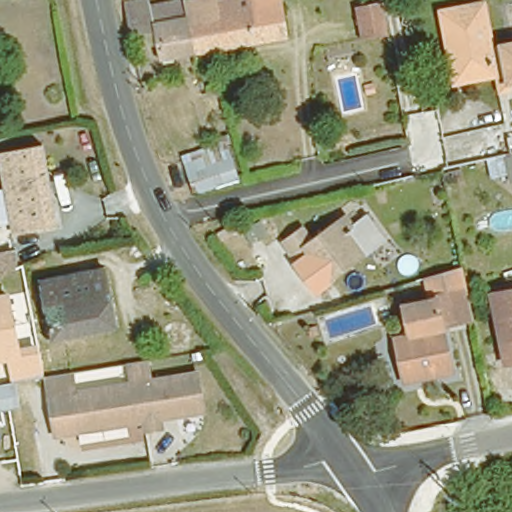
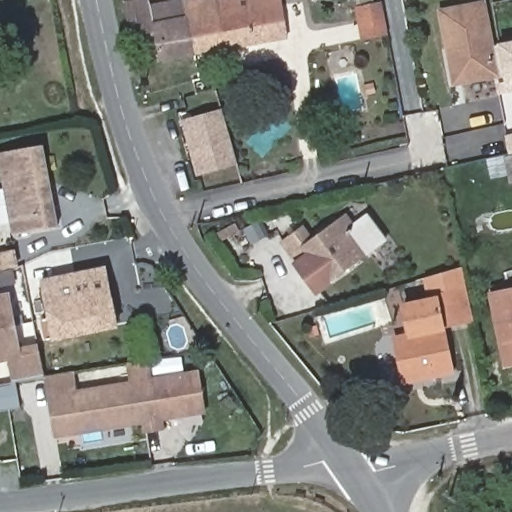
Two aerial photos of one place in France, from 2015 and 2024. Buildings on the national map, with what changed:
unchanged [(182,4),(211,0),(259,0),(260,4),(272,2),(275,15),(280,39),(193,55),(182,4)]
unchanged [(437,7),(466,2),(473,0),(478,0),(487,42),(512,38),(512,82),(504,84),(499,64),(457,75),(450,76),(444,42),(437,7)]
unchanged [(121,38),(115,7),(144,2),(146,11),(182,4),(193,55),(157,62),(151,43),(123,49),(121,38)]
unchanged [(355,35),(352,13),(382,7),(385,27),(355,35)]
new [(179,121),(219,110),(235,164),(195,174),(179,121)]
unchanged [(507,152),(504,134),(512,132),(512,181),(507,182),(504,154),(507,152)]
demolished [(224,137),(237,182),(194,194),(177,153),(224,137)]
unchanged [(57,222),(14,231),(0,157),(0,149),(41,140),(57,222)]
unchanged [(329,278),(313,251),(301,259),(283,232),(305,218),(315,232),(341,218),(350,214),(359,229),(374,251),(329,278)]
unchanged [(0,260),(0,242),(11,240),(15,255),(11,257),(1,260),(0,260)]
unchanged [(46,314),(38,280),(104,266),(118,321),(35,340),(17,343),(12,322),(46,314)]
unchanged [(471,317),(438,326),(437,326),(442,345),(450,373),(404,386),(399,369),(392,343),(405,340),(401,324),(397,310),(429,302),(423,280),(458,271),(471,317)]
unchanged [(504,362),(486,287),(512,282),(512,361),(504,362)]
unchanged [(44,375),(14,382),(9,362),(0,363),(0,295),(9,293),(12,322),(17,343),(35,340),(44,375)]
unchanged [(50,401),(46,376),(76,371),(80,396),(132,387),(129,367),(146,363),(148,363),(152,383),(198,375),(204,413),(161,421),(163,430),(147,432),(145,423),(79,435),(57,439),(53,419),(50,401)]

